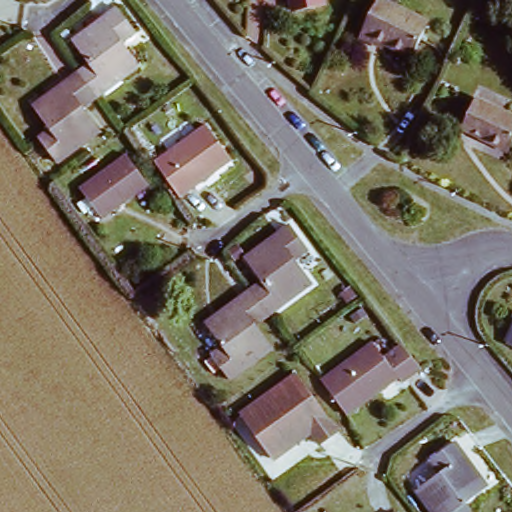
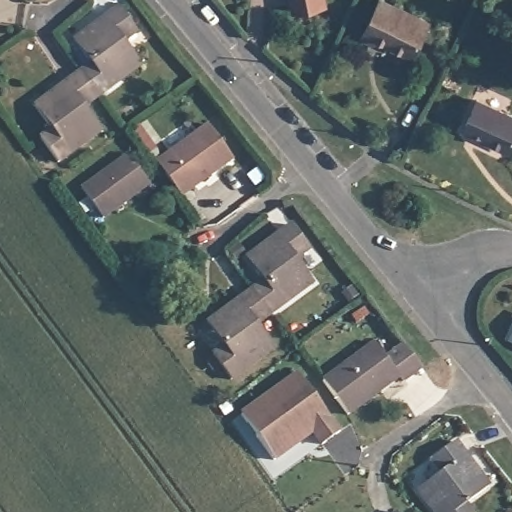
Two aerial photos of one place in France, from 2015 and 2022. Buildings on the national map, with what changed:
unchanged [(378,0),(394,0),(430,21),(410,54),(383,37),(378,46),(358,35),(366,21),(378,0)]
unchanged [(124,39),(141,62),(99,95),(80,70),(92,61),(75,37),(119,5),(137,29),(124,39)]
unchanged [(85,105),(103,129),(60,160),(42,136),(53,128),(35,104),(80,70),(99,95),(85,105)]
unchanged [(473,102),(512,112),(512,144),(479,136),(466,134),(467,128),(473,102)]
unchanged [(232,159),(182,196),(157,162),(207,125),(232,159)]
unchanged [(81,191),(127,156),(150,186),(104,221),(81,191)]
unchanged [(313,278),(270,310),(252,285),(263,277),(247,254),(290,221),(308,245),(295,255),(313,278)]
unchanged [(257,321),(274,344),(230,376),(212,352),(225,342),(207,320),(252,285),(270,310),(257,321)]
unchanged [(512,336),(512,343),(510,341),(512,336)]
unchanged [(419,366),(401,380),(397,375),(345,413),(319,378),(335,366),(370,340),(381,355),(399,341),(419,366)]
unchanged [(315,395),(340,430),(317,444),(310,435),(272,460),(240,410),(297,372),(315,395)]
unchanged [(490,482),(467,500),(475,512),(438,512),(419,487),(443,469),(432,455),(456,437),(490,482)]
unchanged [(393,509),(395,512),(389,512),(393,509)]

